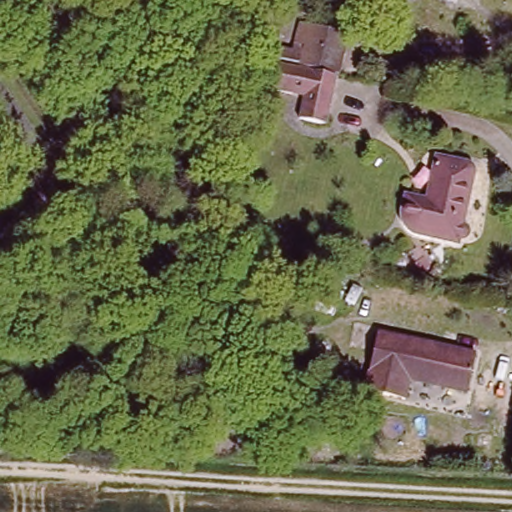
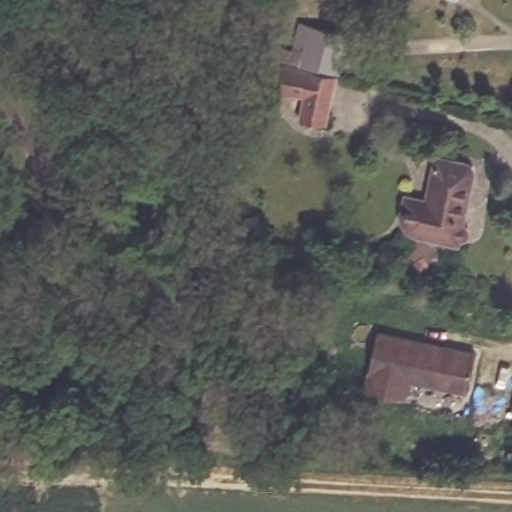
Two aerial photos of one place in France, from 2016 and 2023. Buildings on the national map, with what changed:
unchanged [(338,74),(307,67),(311,45),(295,42),(298,22),(347,32),(338,74)]
unchanged [(294,50),(293,60),(280,59),(280,49),(294,50)]
unchanged [(329,125),(299,120),(303,99),(273,93),(280,62),(307,67),(338,74),(329,125)]
unchanged [(411,229),(404,222),(399,207),(403,194),(423,198),(433,161),(470,169),(458,222),(465,230),(455,238),(411,229)]
unchanged [(475,355),(467,392),(429,385),(425,405),(365,392),(376,335),(475,355)]
unchanged [(225,421),(205,417),(210,387),(215,366),(236,370),(225,421)]

